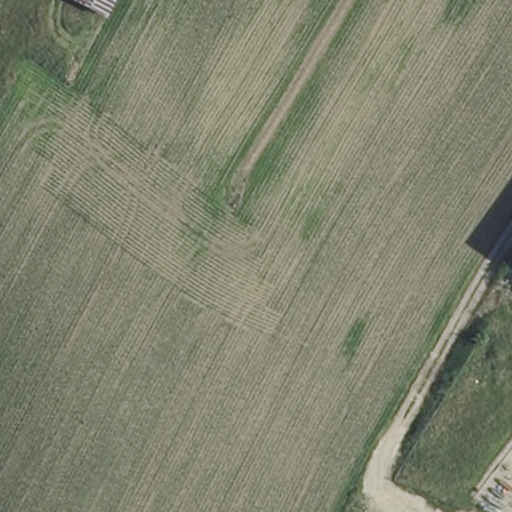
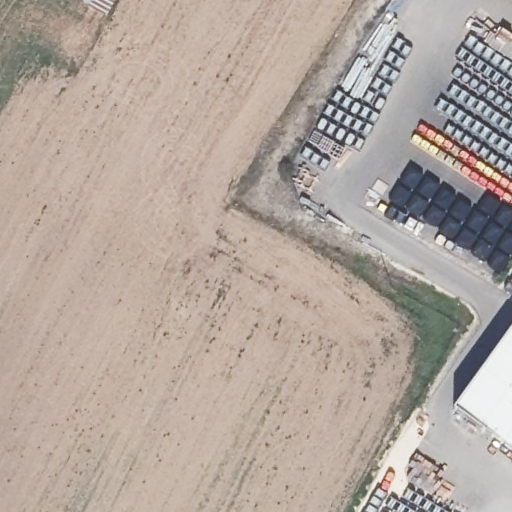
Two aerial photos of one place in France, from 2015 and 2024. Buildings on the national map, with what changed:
unchanged [(66,0),(115,0),(105,21),(66,0)]
new [(512,328),(512,450),(454,409),(512,328)]
demolished [(512,435),(512,512),(507,512),(474,489),(512,435)]

